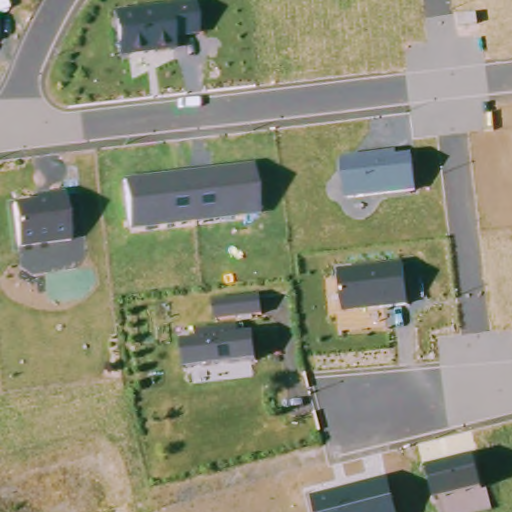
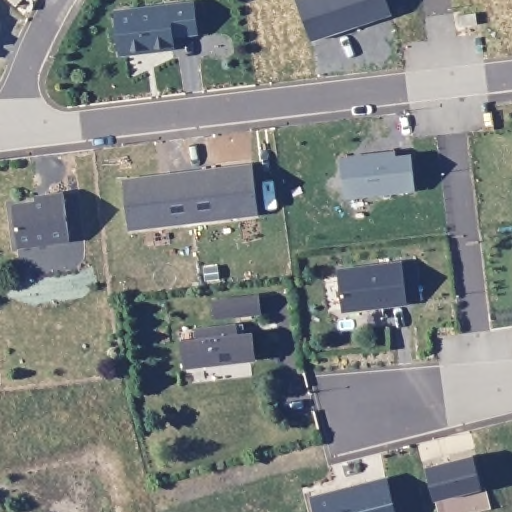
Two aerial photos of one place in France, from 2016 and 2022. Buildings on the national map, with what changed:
new [(392,14),(313,41),(298,0),(387,0),(392,14)]
unchanged [(175,41),(177,51),(119,57),(115,12),(195,3),(198,36),(175,41)]
unchanged [(477,13),(478,24),(460,26),(458,16),(477,13)]
unchanged [(342,157),(395,152),(396,156),(412,153),(417,192),(345,199),(342,157)]
unchanged [(255,167),(260,215),(131,231),(125,183),(255,167)]
unchanged [(72,244),(20,249),(17,207),(40,205),(39,200),(49,199),(67,197),(72,244)]
unchanged [(335,271),(402,264),(405,304),(339,313),(335,271)]
unchanged [(216,304),(262,298),(265,317),(218,323),(216,304)]
unchanged [(182,344),(197,343),(197,332),(238,327),(239,337),(255,336),(258,363),(186,372),(182,344)]
unchanged [(425,466),(472,454),(481,488),(432,499),(425,466)]
unchanged [(388,479),(396,512),(314,512),(311,499),(388,479)]

